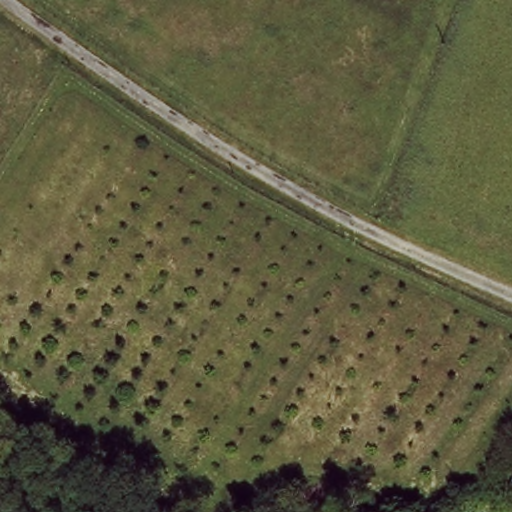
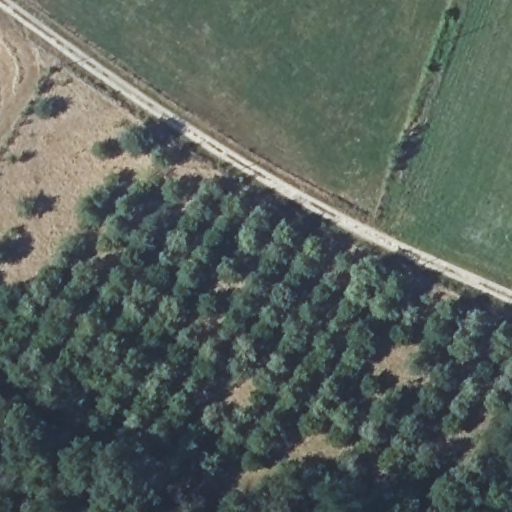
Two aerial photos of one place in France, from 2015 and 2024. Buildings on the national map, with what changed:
[]

